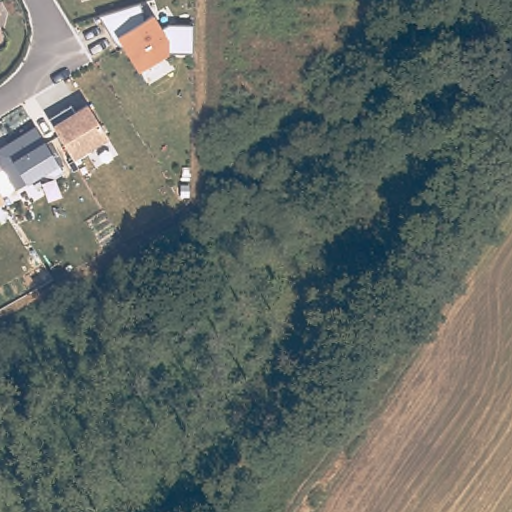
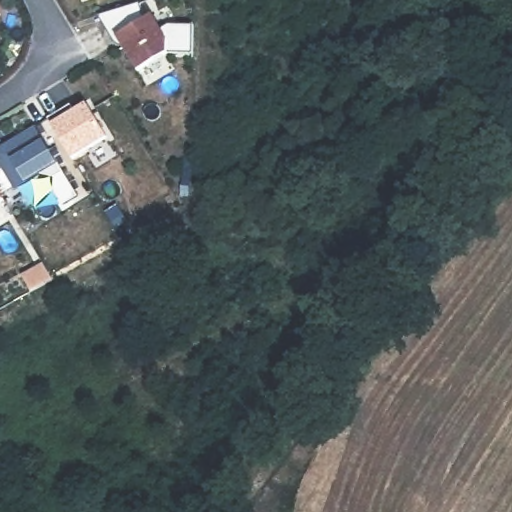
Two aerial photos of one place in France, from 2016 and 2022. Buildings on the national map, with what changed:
unchanged [(118,36),(114,39),(97,16),(141,2),(143,17),(156,12),(165,30),(172,25),(191,25),(192,55),(167,55),(137,70),(118,36)]
unchanged [(0,17),(0,11),(1,13),(0,17)]
unchanged [(110,137),(73,159),(52,123),(87,103),(110,137)]
unchanged [(0,166),(0,148),(35,127),(57,164),(0,200),(0,172),(2,170),(0,166)]

